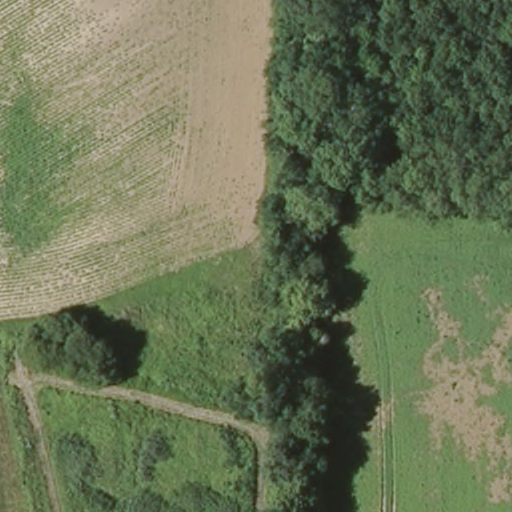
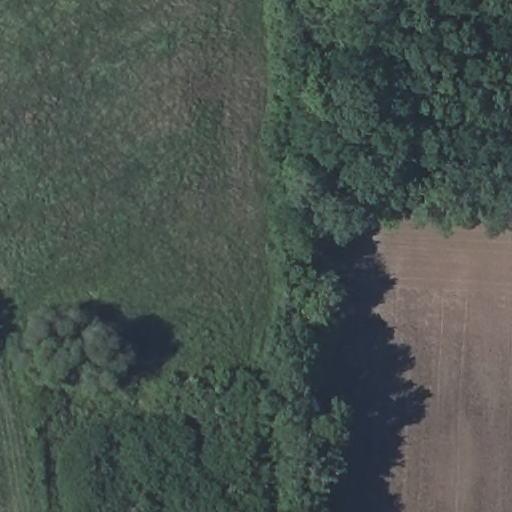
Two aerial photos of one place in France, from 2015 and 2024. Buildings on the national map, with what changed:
[]

